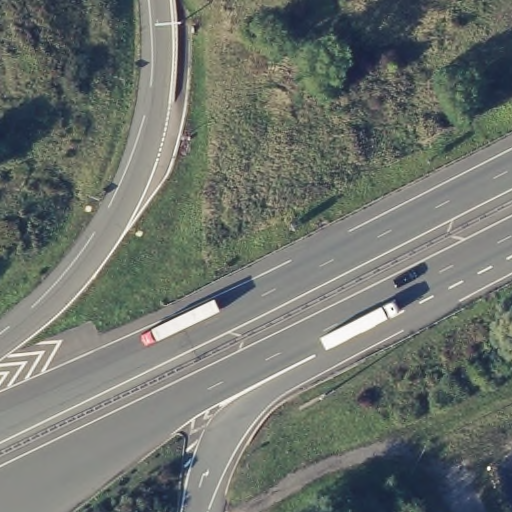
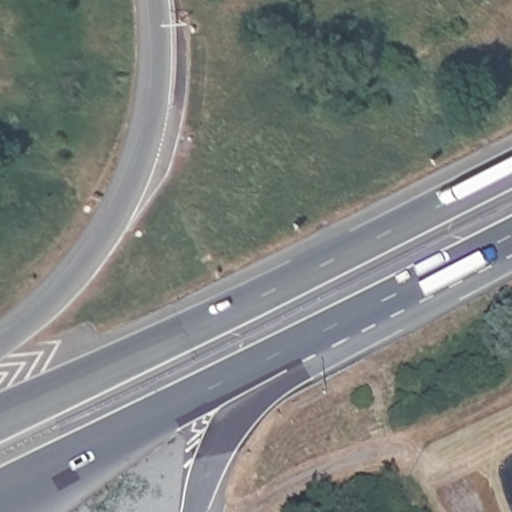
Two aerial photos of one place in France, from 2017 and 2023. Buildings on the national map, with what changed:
[]

